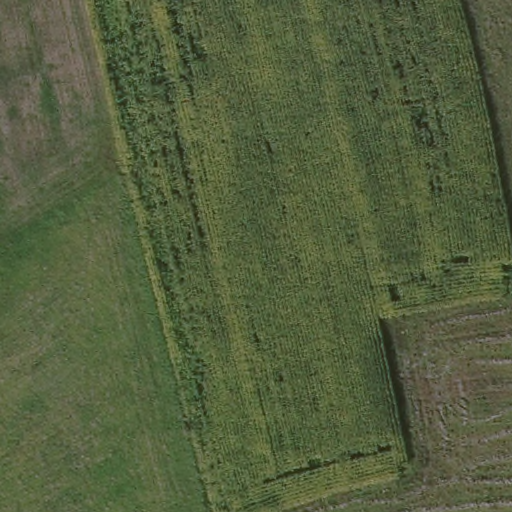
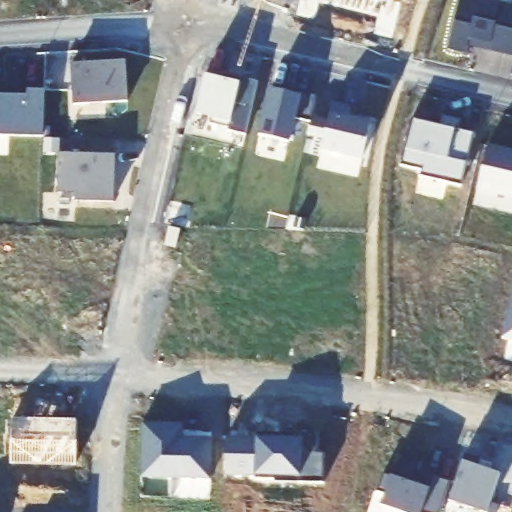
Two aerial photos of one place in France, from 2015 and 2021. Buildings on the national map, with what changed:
new [(512,8),(512,30),(506,53),(490,49),(491,44),(471,39),(467,54),(450,50),(461,0),(478,0),(512,8)]
new [(512,54),(506,53),(512,30),(512,54)]
new [(124,61),(126,103),(73,106),(70,65),(124,61)]
new [(205,76),(224,80),(225,75),(258,82),(251,109),(235,105),(229,129),(210,125),(211,118),(195,115),(205,76)]
new [(25,95),(26,89),(44,90),(42,136),(0,135),(0,94),(25,95)]
new [(270,90),(298,96),(299,92),(316,96),(311,120),(310,123),(293,119),(288,143),(260,136),(270,90)]
new [(310,123),(311,120),(327,124),(332,105),(350,109),(348,118),(379,125),(372,160),(321,149),(324,139),(307,135),(310,123)]
new [(412,119),(440,125),(441,116),(461,121),(459,130),(473,133),(461,187),(420,177),(421,171),(401,166),(412,119)]
new [(512,152),(512,197),(480,189),(489,146),(512,152)]
new [(59,155),(114,156),(113,203),(75,202),(75,194),(57,194),(59,155)]
new [(168,228),(183,231),(180,249),(165,247),(168,228)]
new [(512,342),(502,339),(512,298),(512,342)]
new [(182,425),(182,439),(194,439),(211,440),(210,481),(140,479),(141,424),(182,425)]
new [(225,439),(278,440),(278,435),(317,436),(317,454),(324,454),(323,485),(298,484),(298,478),(275,477),(275,481),(255,480),(255,476),(225,476),(225,439)]
new [(480,461),(478,468),(500,475),(488,512),(476,512),(448,502),(465,455),(480,461)]
new [(390,478),(397,456),(420,464),(418,472),(450,483),(441,512),(392,512),(380,508),(384,496),(377,493),(383,475),(390,478)]

